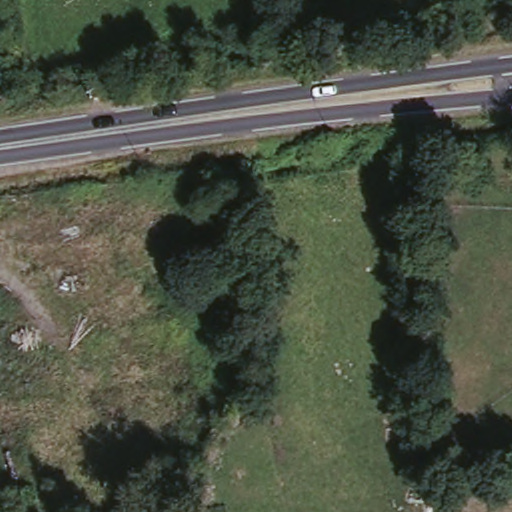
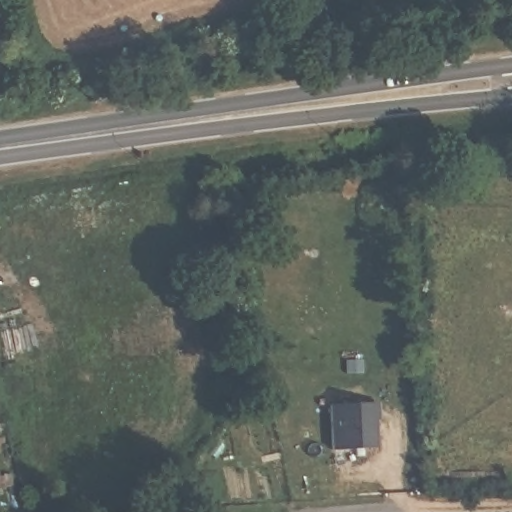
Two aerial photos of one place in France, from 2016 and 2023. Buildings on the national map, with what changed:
unchanged [(7,1),(10,18),(0,19),(0,2),(7,1)]
unchanged [(8,22),(16,59),(0,61),(0,24),(8,22)]
unchanged [(449,171),(449,189),(416,192),(417,174),(449,171)]
new [(381,401),(382,419),(378,419),(380,447),(331,450),(328,405),(381,401)]

